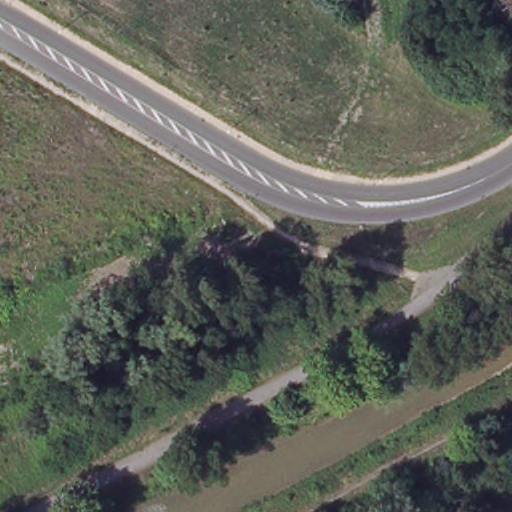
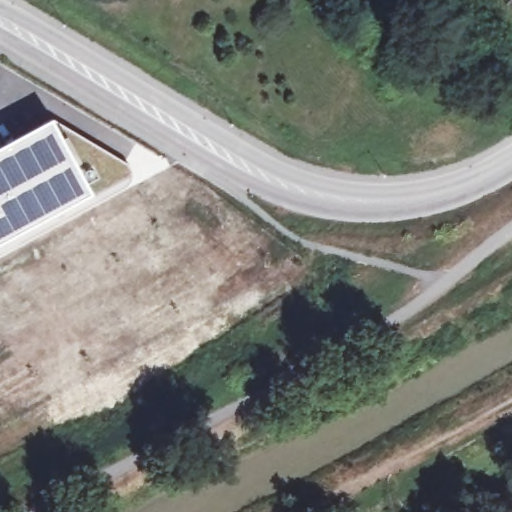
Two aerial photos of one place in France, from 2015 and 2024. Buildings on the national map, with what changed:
new [(55,119),(97,195),(22,234),(0,246),(0,149),(55,119)]

